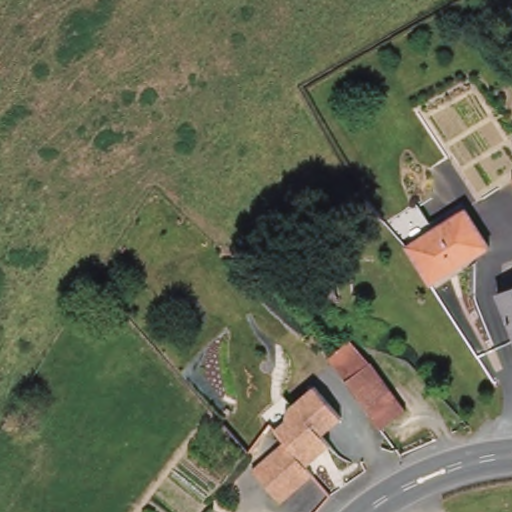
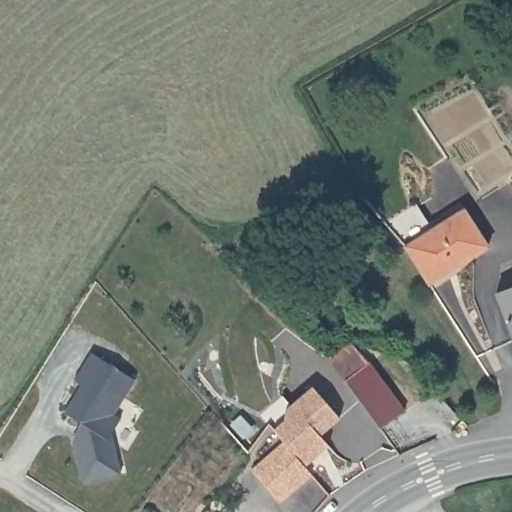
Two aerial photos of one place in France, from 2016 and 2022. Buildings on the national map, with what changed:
unchanged [(512,179),(512,192),(506,183),(512,179)]
unchanged [(484,250),(426,287),(410,263),(402,249),(459,212),(484,250)]
unchanged [(512,289),(512,339),(494,296),(512,289)]
unchanged [(371,431),(338,380),(325,360),(350,344),(363,364),(395,415),(371,431)]
new [(61,410),(77,381),(69,377),(85,348),(130,373),(111,409),(118,413),(106,434),(110,437),(118,471),(79,479),(70,437),(79,420),(61,410)]
unchanged [(285,454),(274,441),(266,431),(278,421),(279,411),(306,388),(333,420),(312,437),(317,446),(310,451),(313,454),(297,468),(285,454)]
unchanged [(285,454),(297,468),(298,469),(300,471),(274,504),(273,503),(243,480),(274,441),(285,454)]

